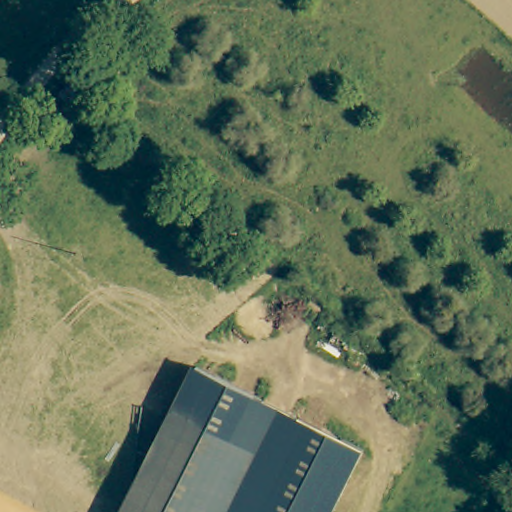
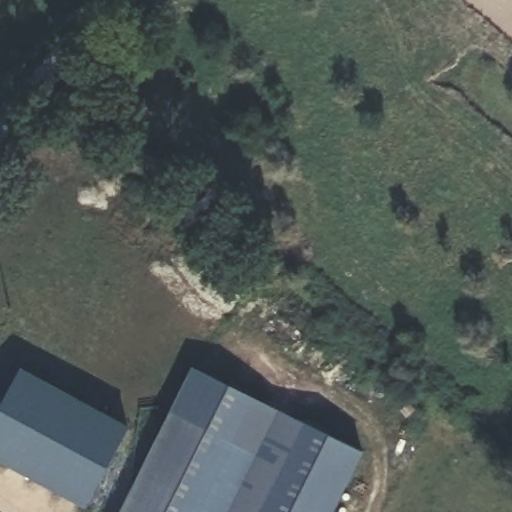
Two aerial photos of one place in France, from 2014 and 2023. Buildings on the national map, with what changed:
new [(0,462),(0,403),(19,368),(127,425),(85,508),(0,462)]
unchanged [(263,406),(209,512),(124,512),(196,371),(263,406)]
unchanged [(334,512),(209,512),(263,406),(362,457),(334,512)]

